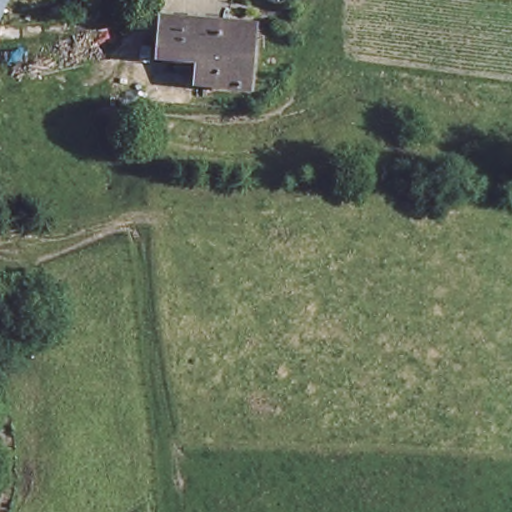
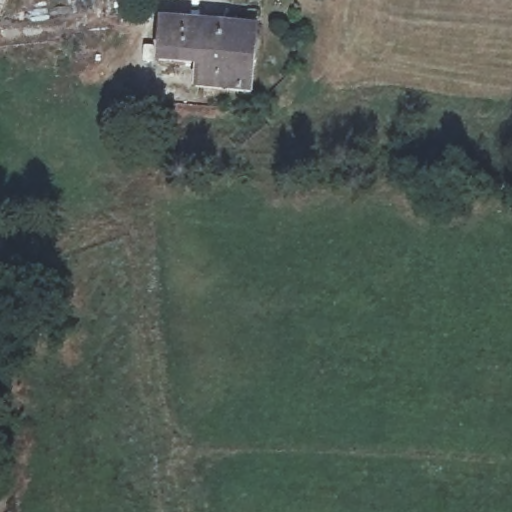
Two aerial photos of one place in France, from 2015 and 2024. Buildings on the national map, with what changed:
unchanged [(0,22),(0,0),(9,0),(0,22)]
unchanged [(265,24),(255,98),(184,89),(188,69),(154,63),(160,15),(265,24)]

